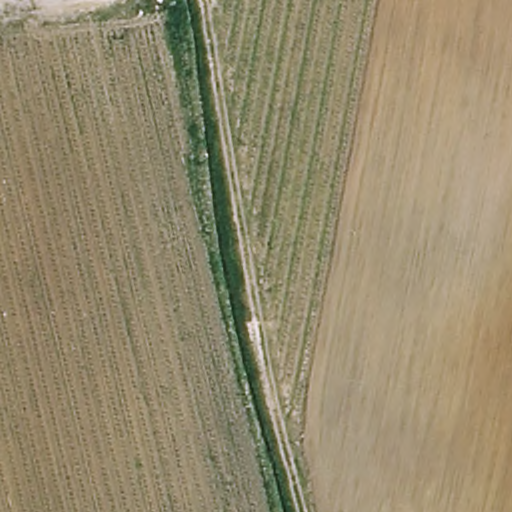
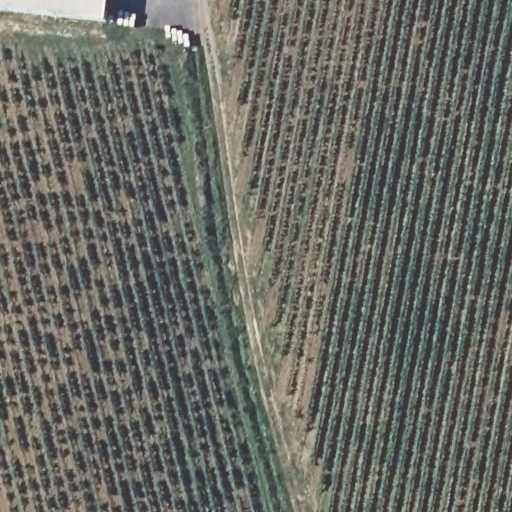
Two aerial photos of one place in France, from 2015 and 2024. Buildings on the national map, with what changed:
new [(0,9),(0,0),(109,0),(106,19),(0,9)]

